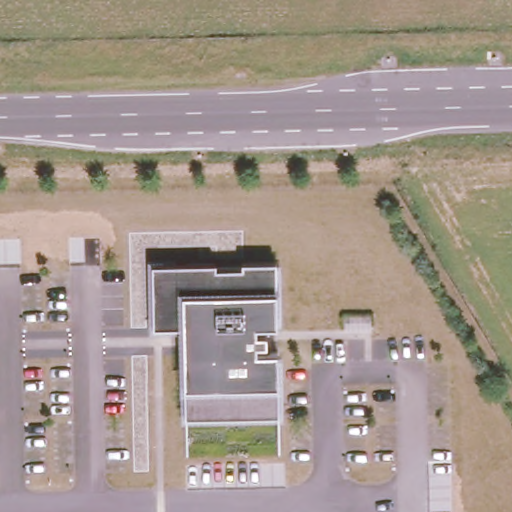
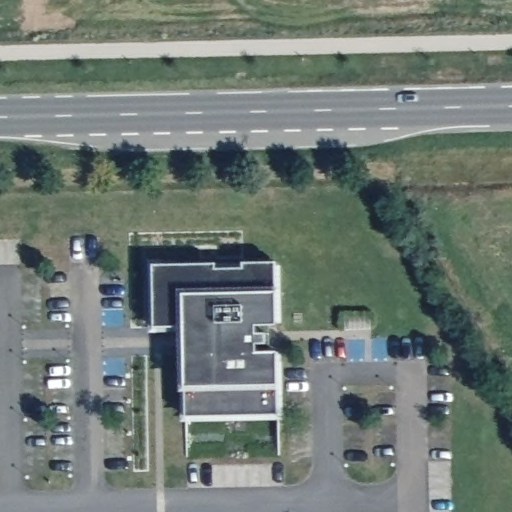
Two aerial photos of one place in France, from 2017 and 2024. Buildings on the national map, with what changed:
unchanged [(278,262),(279,291),(281,326),(266,325),(268,352),(281,352),(282,387),(283,423),(184,427),(186,388),(185,330),(154,331),(151,267),(278,262)]

